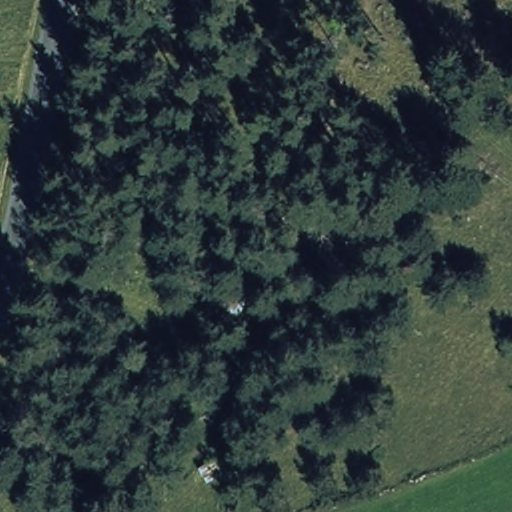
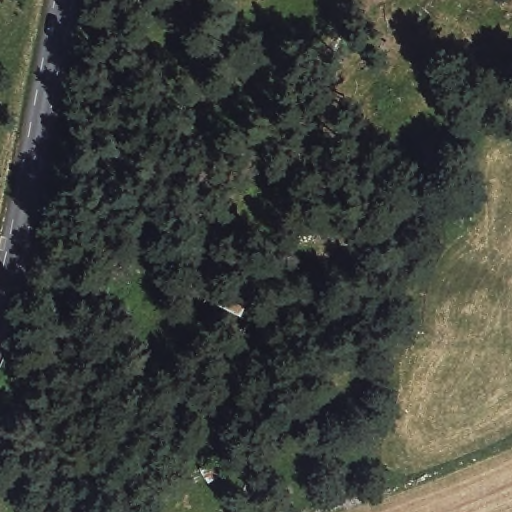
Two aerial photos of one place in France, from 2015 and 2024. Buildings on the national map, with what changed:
unchanged [(212,302),(221,283),(253,297),(243,319),(212,302)]

